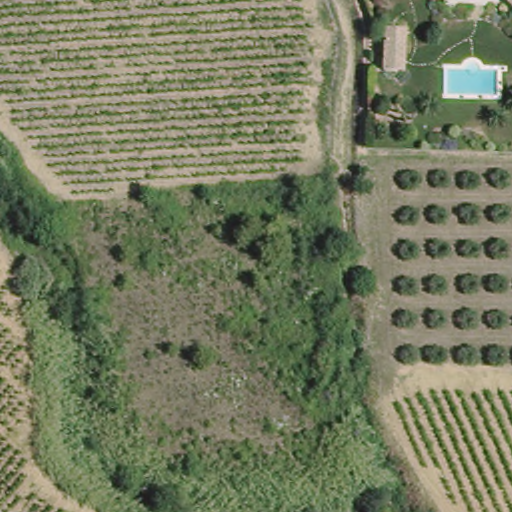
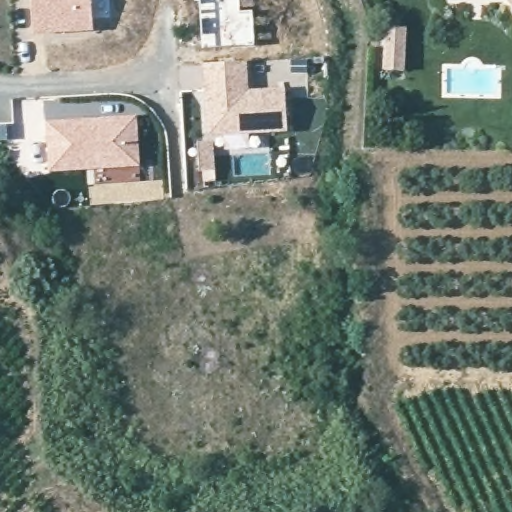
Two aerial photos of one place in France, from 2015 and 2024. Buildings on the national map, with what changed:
new [(32,36),(30,0),(92,0),(94,31),(32,36)]
new [(253,9),(255,45),(201,47),(195,0),(240,0),(241,10),(253,9)]
unchanged [(512,0),(512,2),(510,0),(512,0)]
unchanged [(413,29),(411,72),(385,68),(387,25),(413,29)]
new [(247,61),(250,89),(285,85),(287,131),(213,137),(206,141),(205,137),(203,137),(202,64),(247,61)]
new [(137,115),(140,181),(88,185),(88,177),(91,177),(90,170),(48,172),(44,121),(137,115)]
new [(140,181),(162,181),(163,198),(90,204),(88,185),(140,181)]

